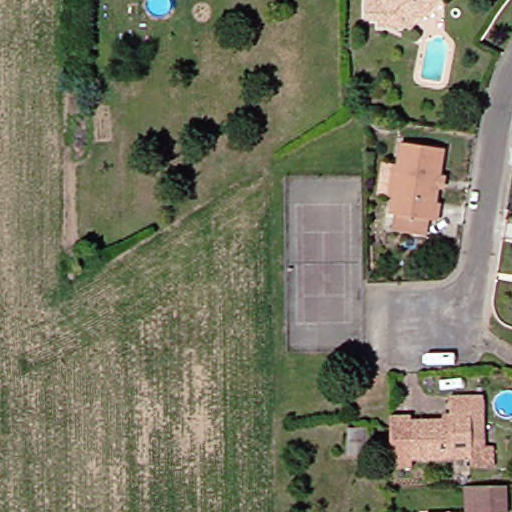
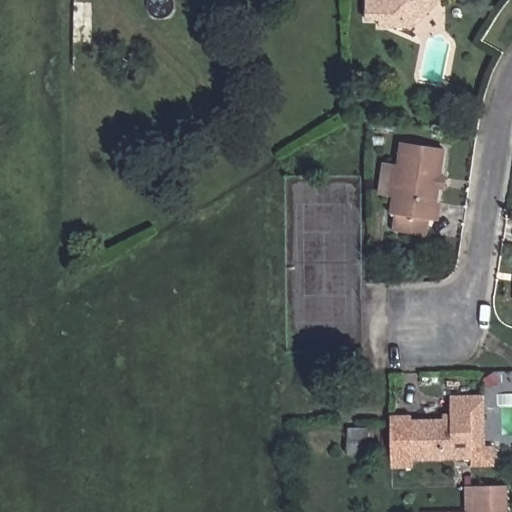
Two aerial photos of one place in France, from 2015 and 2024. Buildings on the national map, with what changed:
unchanged [(413,26),(384,27),(381,22),(370,22),(370,1),(383,1),(384,0),(444,0),(417,29),(413,26)]
unchanged [(73,3),(93,3),(94,42),(74,43),(73,3)]
unchanged [(416,234),(395,230),(398,215),(394,215),(404,146),(444,152),(435,221),(430,221),(428,235),(416,234)]
unchanged [(499,447),(500,467),(477,467),(476,461),(417,462),(417,470),(393,471),(393,418),(415,417),(415,422),(456,421),(455,399),(487,397),(489,425),(490,447),(499,447)]
unchanged [(371,454),(349,453),(349,429),(371,429),(371,454)]
unchanged [(469,486),(477,486),(509,485),(510,512),(469,512),(469,486)]

